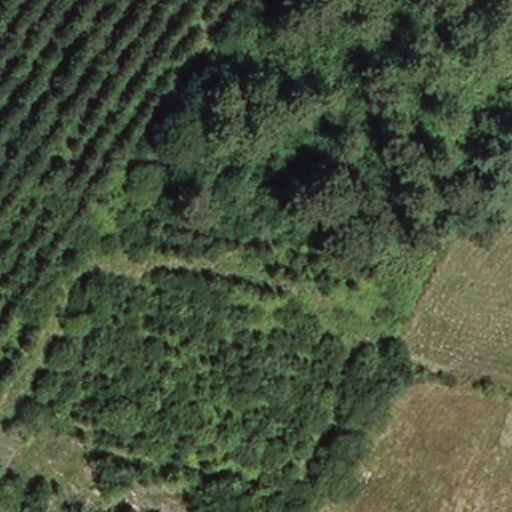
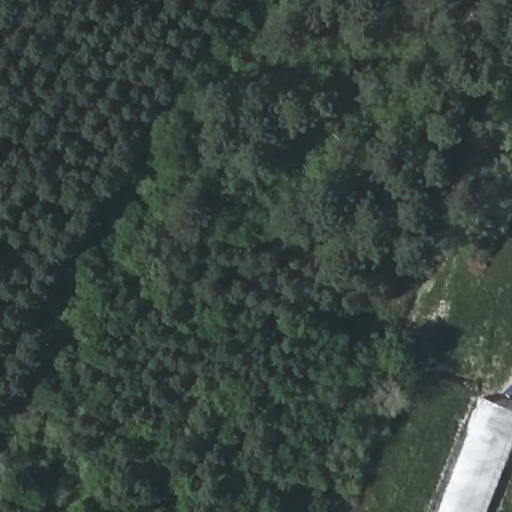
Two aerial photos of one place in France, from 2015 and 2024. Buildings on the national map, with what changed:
new [(484,512),(435,512),(478,397),(512,410),(512,438),(484,512)]

